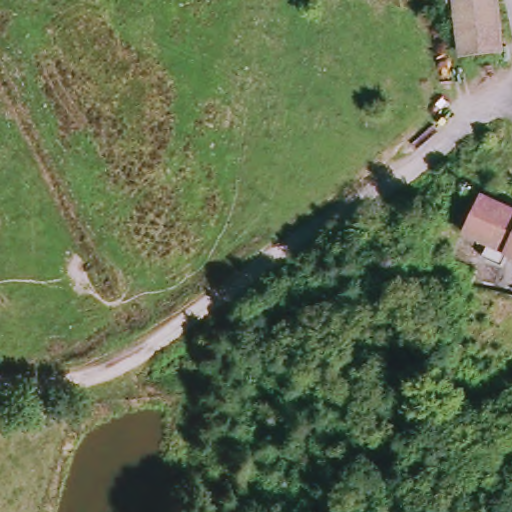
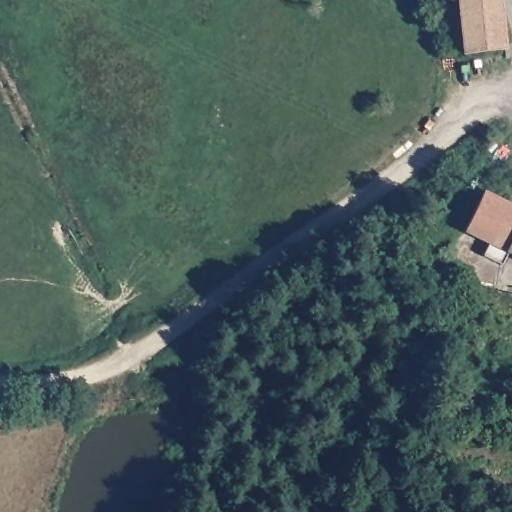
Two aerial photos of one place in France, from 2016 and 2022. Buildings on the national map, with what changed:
unchanged [(461,1),(448,2),(447,0),(468,0),(461,1)]
unchanged [(505,5),(506,52),(504,57),(463,57),(461,1),(468,0),(503,0),(505,5)]
unchanged [(487,192),(512,203),(512,254),(496,245),(466,232),(487,192)]

